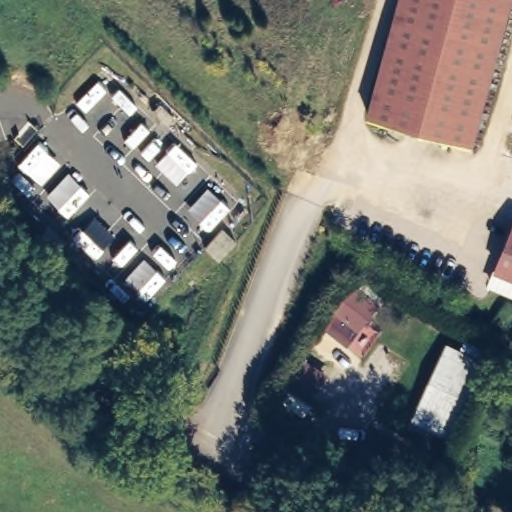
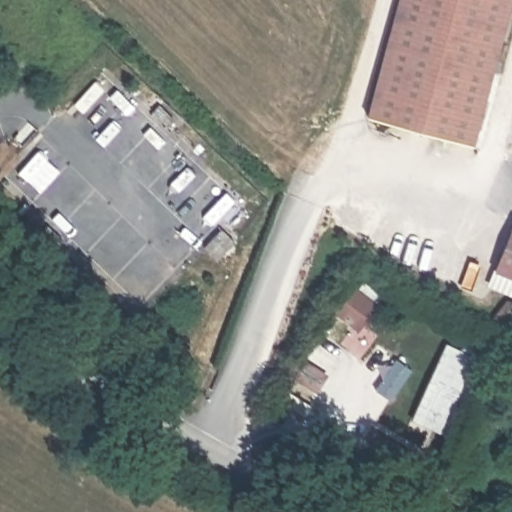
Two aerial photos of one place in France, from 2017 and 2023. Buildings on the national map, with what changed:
unchanged [(511,0),(475,150),(381,125),(370,121),(388,47),(400,0),(511,0)]
unchanged [(491,267),(512,226),(512,276),(507,275),(491,267)]
unchanged [(450,443),(408,427),(448,348),(461,355),(470,341),(490,356),(450,443)]

